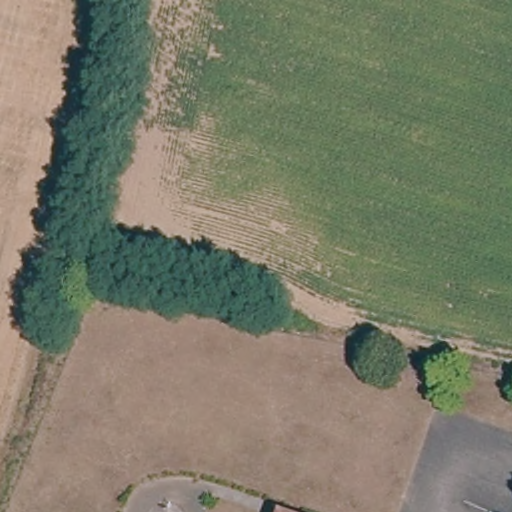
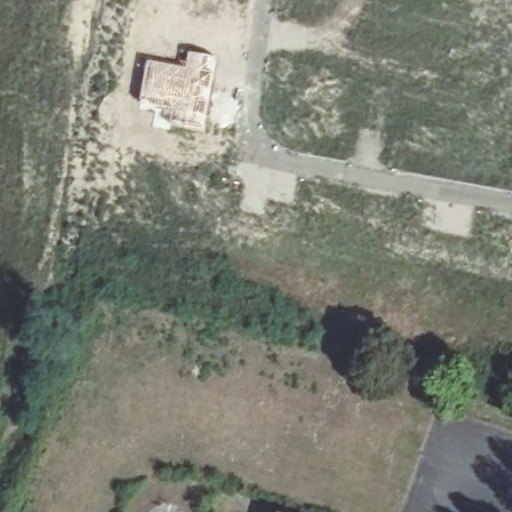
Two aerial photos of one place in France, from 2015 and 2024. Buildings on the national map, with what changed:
new [(148,60),(184,67),(188,51),(217,58),(203,131),(169,123),(171,112),(139,104),(148,60)]

